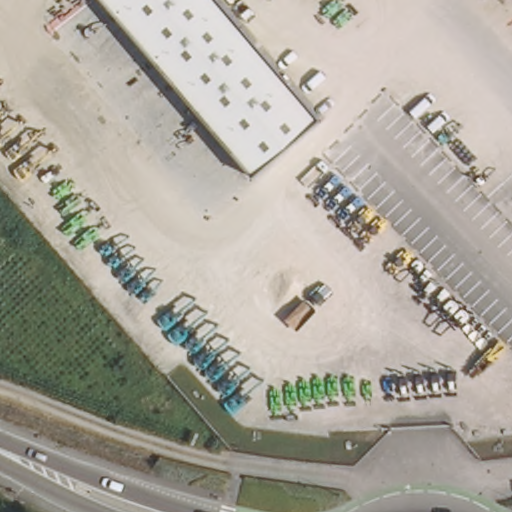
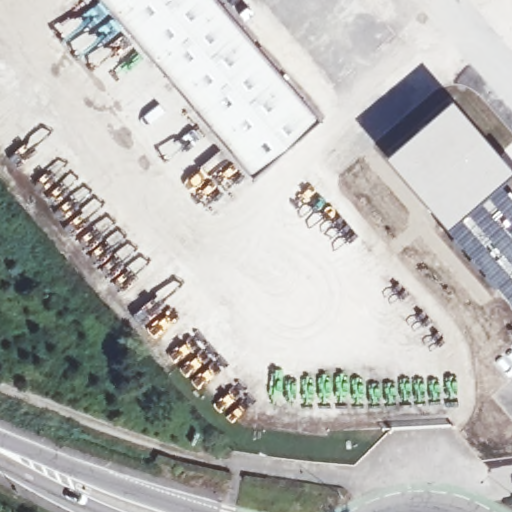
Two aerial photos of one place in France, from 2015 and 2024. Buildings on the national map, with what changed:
unchanged [(318,116),(250,174),(100,0),(219,0),(318,116)]
new [(449,96),(512,167),(500,179),(442,227),(382,155),(449,96)]
new [(500,179),(512,192),(512,303),(510,305),(442,227),(500,179)]

